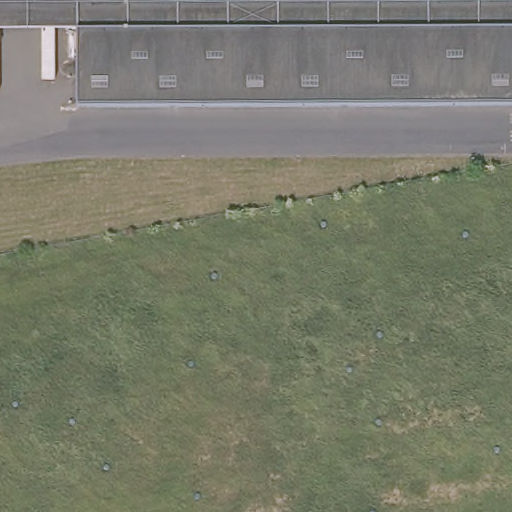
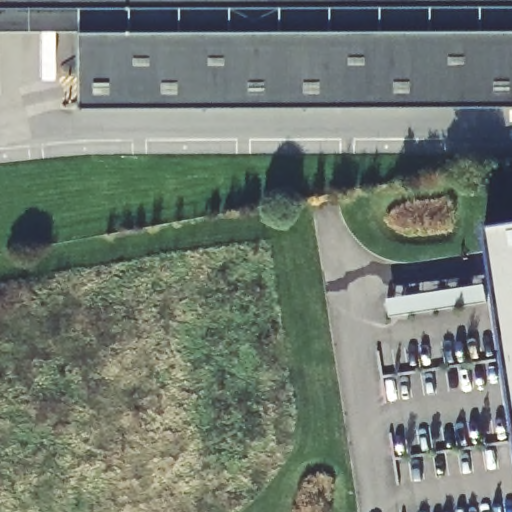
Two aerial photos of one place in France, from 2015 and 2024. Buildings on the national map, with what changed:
unchanged [(79,106),(78,32),(78,4),(0,4),(0,0),(512,0),(512,104),(79,106)]
unchanged [(0,32),(0,4),(78,4),(78,32),(0,32)]
new [(486,227),(512,223),(512,399),(486,227)]

